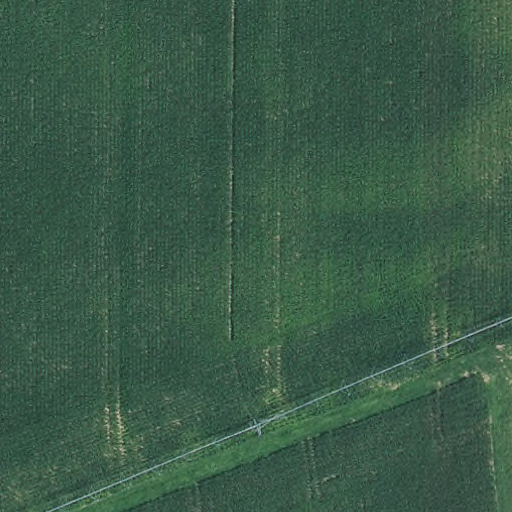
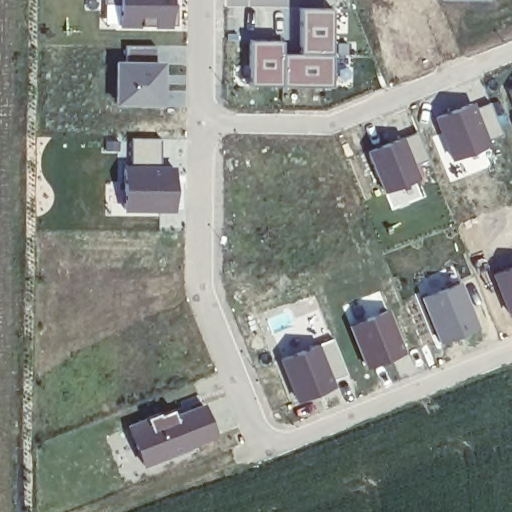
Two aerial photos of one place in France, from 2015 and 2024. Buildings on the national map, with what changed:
new [(121,31),(122,0),(175,0),(175,29),(121,31)]
new [(297,6),(332,7),(330,52),(296,51),(297,6)]
new [(249,38),(281,39),(281,51),(296,51),(330,52),(330,84),(248,84),(249,38)]
new [(113,58),(122,58),(123,43),(157,44),(157,59),(165,59),(162,104),(112,103),(113,58)]
new [(512,85),(512,107),(505,87),(512,85)]
new [(473,100),(476,105),(490,100),(501,134),(488,139),(490,143),(450,159),(433,116),(473,100)]
new [(418,129),(430,157),(416,161),(421,179),(385,194),(369,148),(418,129)]
new [(130,136),(160,136),(160,163),(171,163),(173,211),(123,211),(122,162),(129,162),(130,136)]
new [(508,316),(490,272),(512,264),(512,315),(508,316)]
new [(462,278),(480,326),(440,342),(420,295),(462,278)]
new [(386,306),(404,351),(364,367),(346,323),(386,306)]
new [(331,337),(346,374),(333,379),(335,385),(296,402),(278,358),(331,337)]
new [(222,438),(146,468),(130,425),(175,408),(177,414),(208,401),(222,438)]

